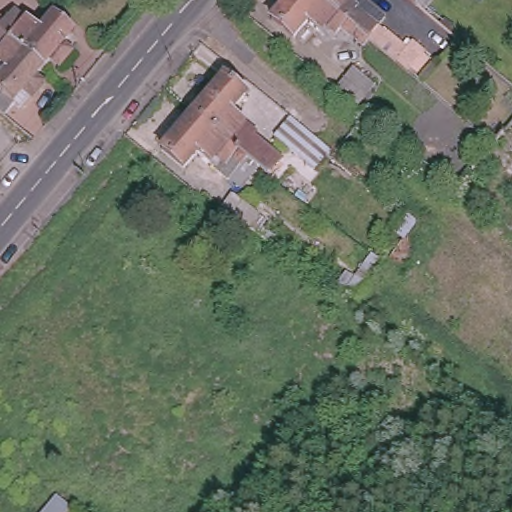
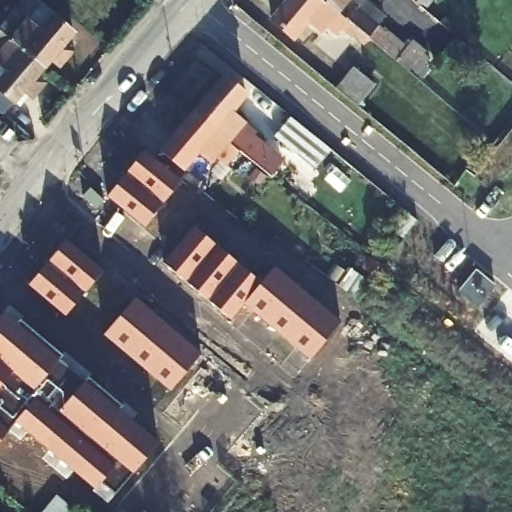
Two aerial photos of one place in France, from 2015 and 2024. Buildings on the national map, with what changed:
unchanged [(371,36),(367,41),(342,21),(337,27),(327,19),(320,27),(307,17),(294,33),(272,15),(284,0),(328,0),(371,36)]
unchanged [(359,2),(357,4),(387,28),(387,27),(407,43),(412,37),(423,47),(407,67),(371,36),(328,0),(357,0),(359,2)]
unchanged [(0,22),(5,25),(9,21),(21,31),(29,22),(42,33),(55,17),(75,33),(64,46),(71,53),(60,65),(53,59),(45,68),(0,31),(0,22)]
unchanged [(43,84),(32,97),(25,92),(15,104),(0,92),(0,83),(8,73),(0,65),(0,56),(3,52),(0,50),(0,31),(45,68),(37,78),(43,84)]
unchanged [(220,73),(241,91),(227,107),(240,118),(237,123),(276,156),(264,171),(254,163),(245,155),(189,109),(220,73)]
unchanged [(344,78),(365,94),(356,106),(335,89),(344,78)]
unchanged [(240,181),(227,171),(225,173),(193,146),(179,163),(158,145),(189,109),(245,155),(254,163),(240,181)]
unchanged [(314,137),(300,155),(277,137),(292,119),(314,137)]
new [(182,180),(146,224),(108,194),(145,148),(182,180)]
unchanged [(217,187),(242,207),(233,219),(210,200),(208,199),(217,187)]
new [(260,281),(274,264),(342,321),(312,357),(243,302),(232,317),(164,262),(193,226),(260,281)]
new [(102,270),(65,314),(28,283),(67,240),(102,270)]
new [(200,354),(170,390),(103,335),(135,298),(200,354)]
new [(17,322),(160,442),(110,501),(95,488),(15,422),(0,440),(0,315),(7,307),(20,318),(17,322)]
unchanged [(75,506),(70,512),(48,512),(61,496),(75,506)]

